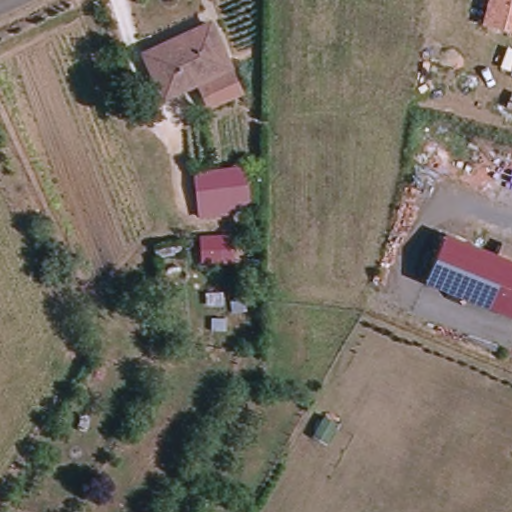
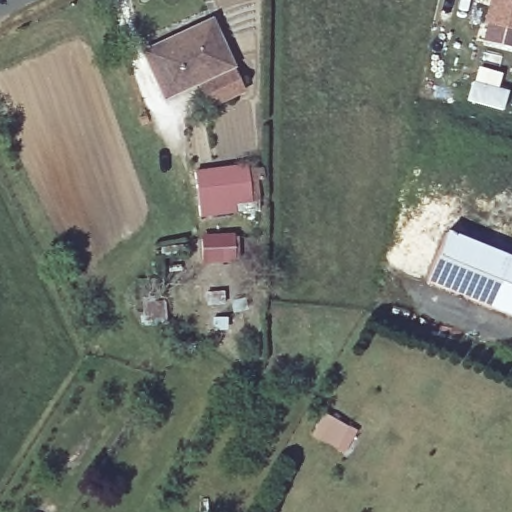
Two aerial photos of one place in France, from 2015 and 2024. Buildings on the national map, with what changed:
unchanged [(482,25),(488,0),(512,0),(512,33),(482,25)]
unchanged [(169,95),(150,53),(215,21),(233,65),(199,80),(169,95)]
unchanged [(213,107),(199,80),(233,65),(245,91),(213,107)]
unchanged [(204,210),(203,180),(253,174),(252,197),(228,200),(226,209),(204,210)]
unchanged [(445,235),(512,262),(512,318),(426,283),(445,235)]
unchanged [(200,261),(200,238),(234,236),(235,258),(200,261)]

